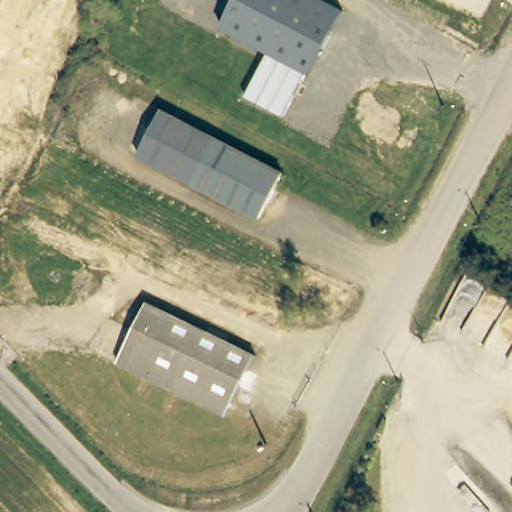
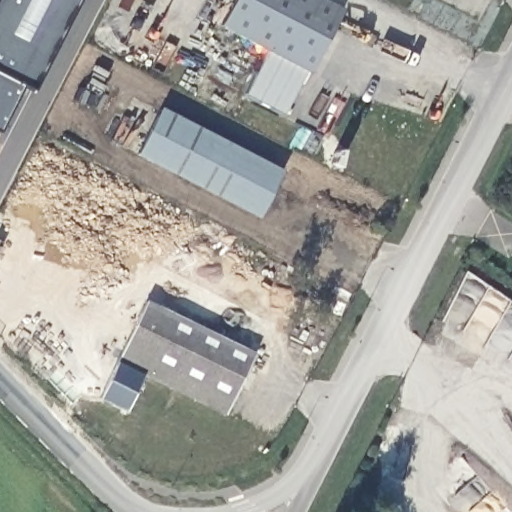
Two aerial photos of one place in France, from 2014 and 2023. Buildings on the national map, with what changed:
new [(24,85),(1,133),(0,133),(0,0),(79,0),(32,90),(24,85)]
unchanged [(341,10),(308,73),(302,70),(278,114),(242,96),(265,51),(218,28),(233,0),(322,0),(341,10)]
unchanged [(257,220),(134,154),(156,112),(277,177),(257,220)]
unchanged [(224,415),(117,361),(145,303),(252,356),(224,415)]
new [(124,413),(97,401),(117,361),(143,374),(124,413)]

